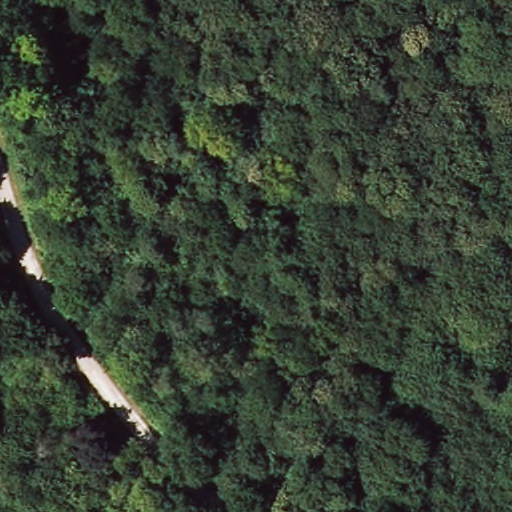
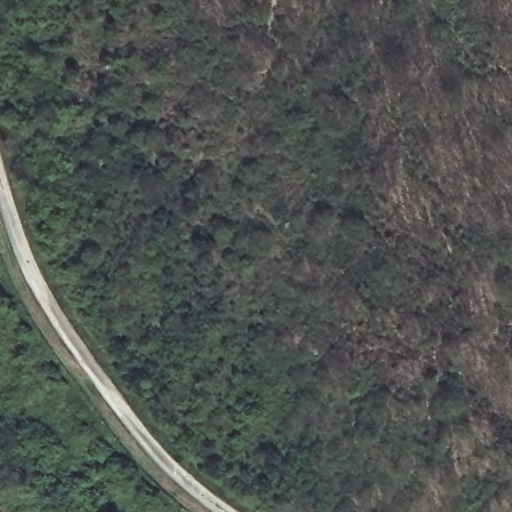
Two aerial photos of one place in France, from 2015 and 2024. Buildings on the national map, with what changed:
[]

